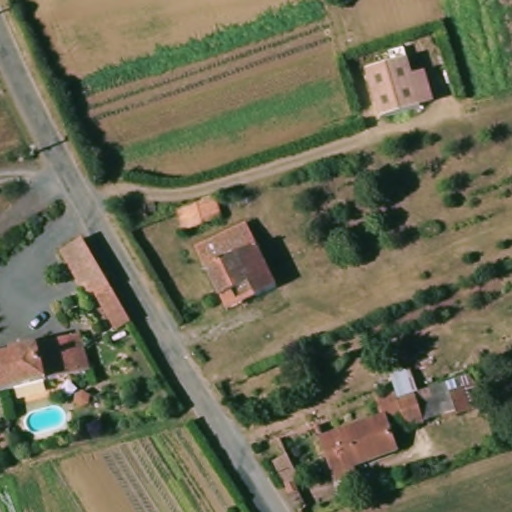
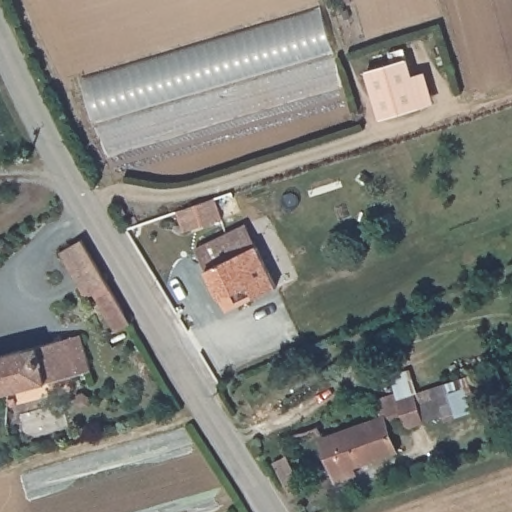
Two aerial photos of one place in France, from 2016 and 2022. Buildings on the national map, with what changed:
new [(79,79),(320,8),(333,54),(93,124),(79,79)]
unchanged [(412,58),(428,105),(387,119),(373,70),(412,58)]
unchanged [(226,214),(186,227),(181,214),(222,200),(226,214)]
unchanged [(251,223),(280,286),(257,295),(252,282),(223,296),(199,245),(251,223)]
unchanged [(117,329),(97,292),(89,296),(64,252),(87,240),(90,246),(117,293),(134,322),(117,329)]
unchanged [(82,332),(90,368),(7,388),(0,363),(0,352),(82,332)]
unchanged [(7,388),(0,390),(0,363),(7,388)]
unchanged [(447,385),(450,393),(463,389),(471,412),(458,416),(457,412),(408,429),(403,416),(386,422),(397,452),(348,471),(351,478),(336,483),(322,440),(382,419),(377,400),(397,393),(399,400),(447,385)]

